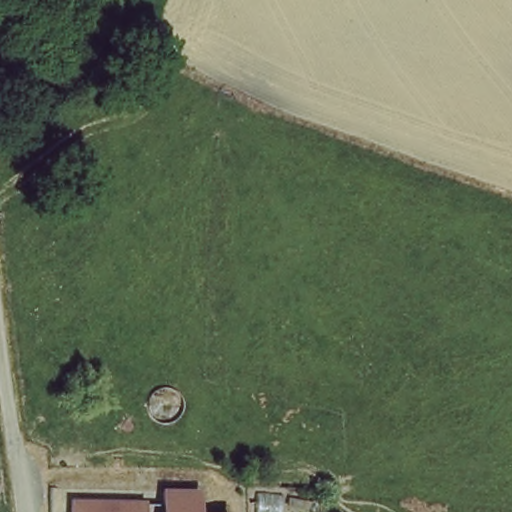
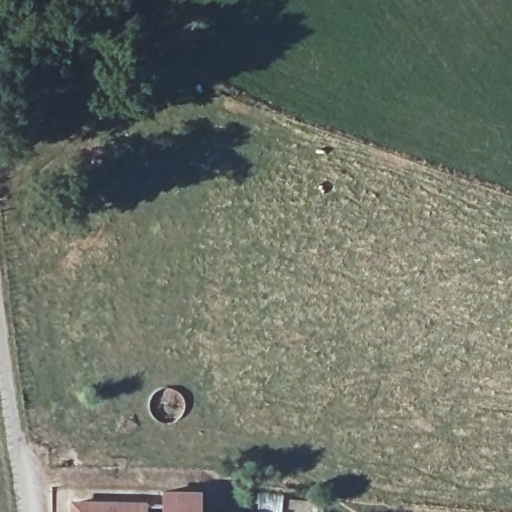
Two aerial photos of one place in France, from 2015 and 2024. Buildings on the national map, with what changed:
unchanged [(153,492),(187,492),(187,512),(153,512),(153,506),(153,492)]
unchanged [(133,505),(133,512),(63,512),(64,504),(133,505)]

